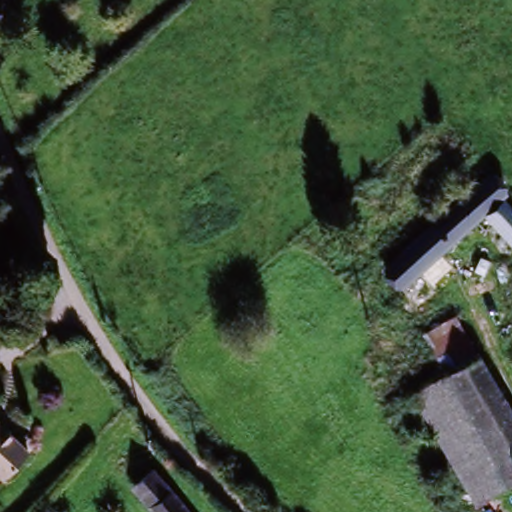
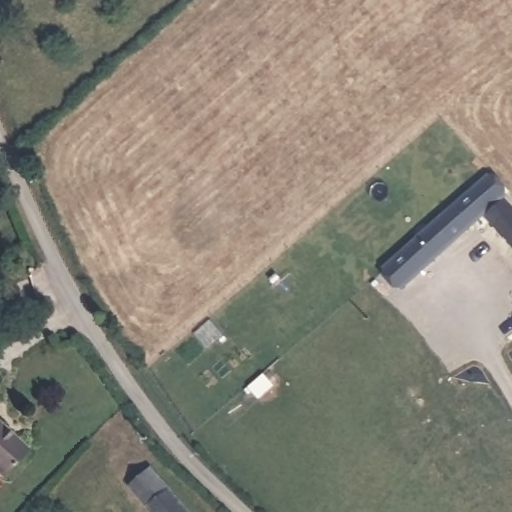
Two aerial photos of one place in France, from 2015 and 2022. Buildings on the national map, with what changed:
unchanged [(402,282),(387,266),(488,177),(503,195),(402,282)]
unchanged [(512,213),(512,248),(485,217),(502,202),(512,213)]
demolished [(512,427),(512,471),(503,477),(441,368),(468,352),(512,427)]
demolished [(478,512),(412,398),(446,377),(503,477),(510,490),(478,512)]
unchanged [(0,483),(0,432),(25,455),(0,483)]
unchanged [(137,487),(157,471),(192,512),(158,512),(137,487)]

